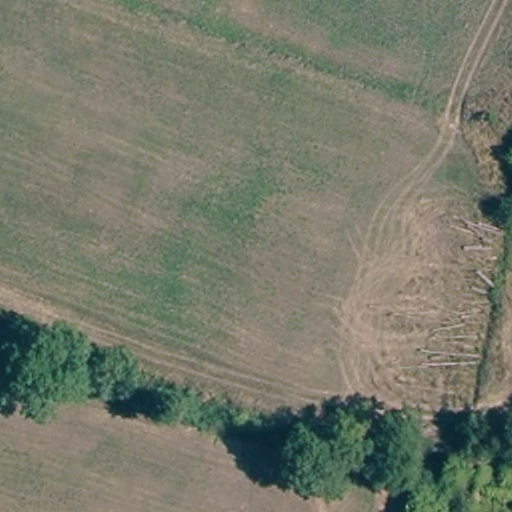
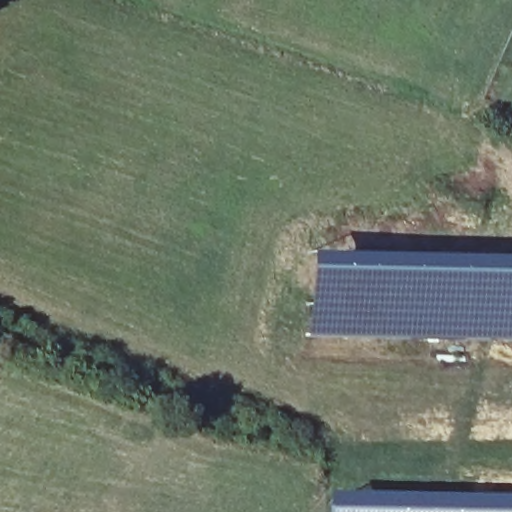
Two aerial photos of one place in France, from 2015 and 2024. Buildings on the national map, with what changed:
new [(307,252),(512,256),(512,341),(304,336),(307,252)]
new [(343,497),(512,499),(512,512),(343,512),(343,497)]

